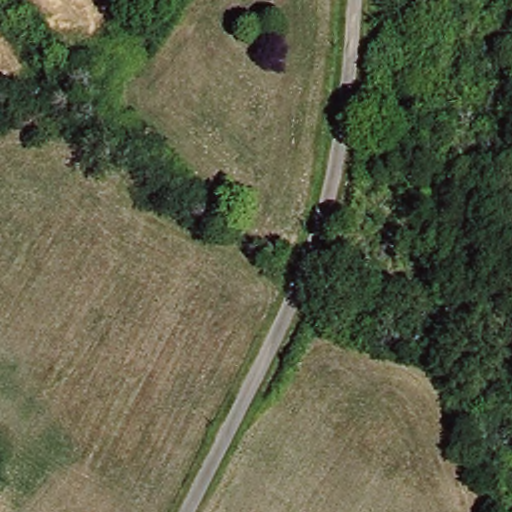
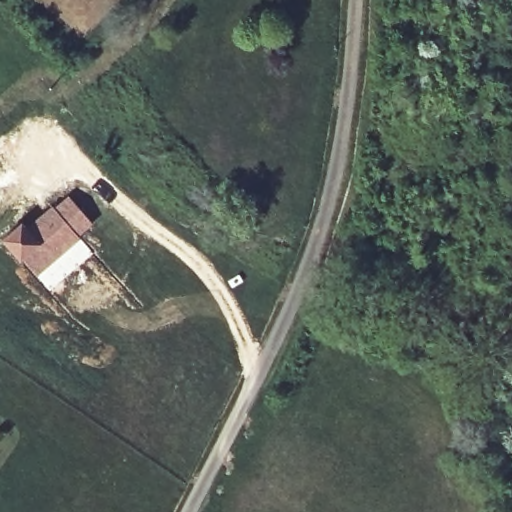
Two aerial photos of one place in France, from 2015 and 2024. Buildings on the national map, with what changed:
new [(24,219),(28,223),(68,194),(93,224),(79,236),(93,252),(49,292),(0,240),(0,238),(24,219)]

